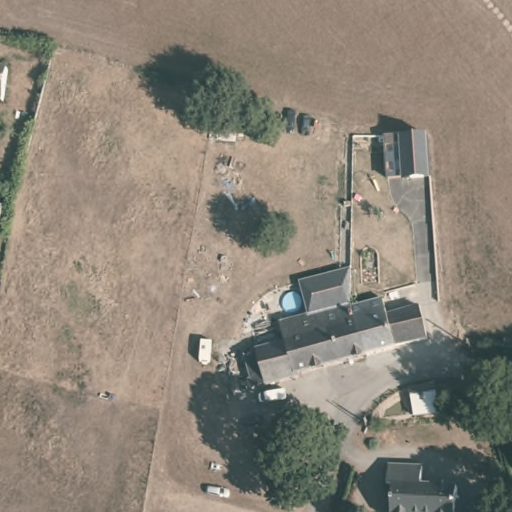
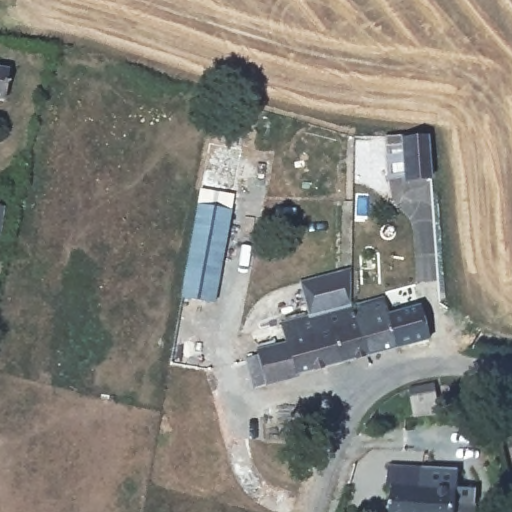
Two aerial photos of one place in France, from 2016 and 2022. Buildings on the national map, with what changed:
unchanged [(0,68),(5,69),(3,102),(0,102),(0,68)]
unchanged [(431,181),(404,183),(404,177),(387,179),(388,138),(428,137),(431,181)]
unchanged [(0,230),(0,202),(5,203),(0,230)]
new [(214,303),(180,297),(196,205),(232,211),(214,303)]
unchanged [(306,313),(300,283),(346,270),(353,301),(306,313)]
unchanged [(386,296),(391,314),(425,305),(431,325),(433,333),(424,340),(390,350),(372,360),(370,355),(355,304),(386,296)]
unchanged [(370,355),(300,372),(297,377),(268,383),(260,376),(250,377),(245,358),(258,355),(258,347),(286,339),(281,321),(353,301),(355,304),(370,355)]
unchanged [(462,404),(440,402),(442,384),(465,387),(462,404)]
unchanged [(425,460),(424,482),(460,483),(460,494),(478,495),(478,512),(395,512),(395,481),(390,481),(392,458),(425,460)]

